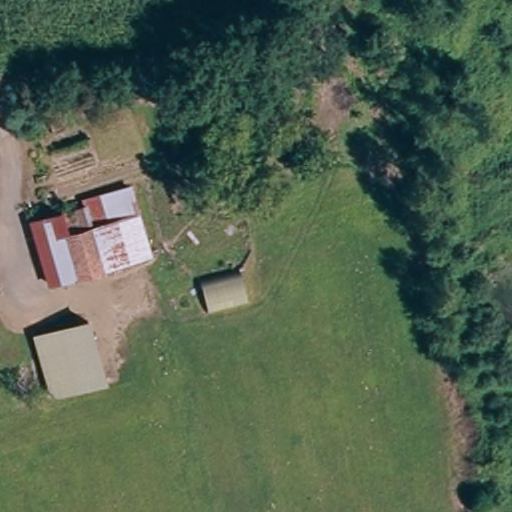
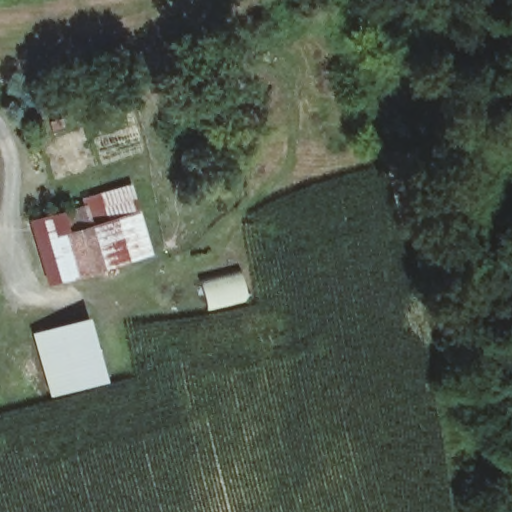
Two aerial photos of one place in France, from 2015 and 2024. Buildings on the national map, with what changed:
unchanged [(45,287),(26,221),(61,211),(81,206),(80,195),(143,180),(165,249),(45,287)]
unchanged [(206,316),(196,281),(242,269),(249,303),(206,316)]
unchanged [(49,398),(31,332),(91,317),(108,380),(49,398)]

